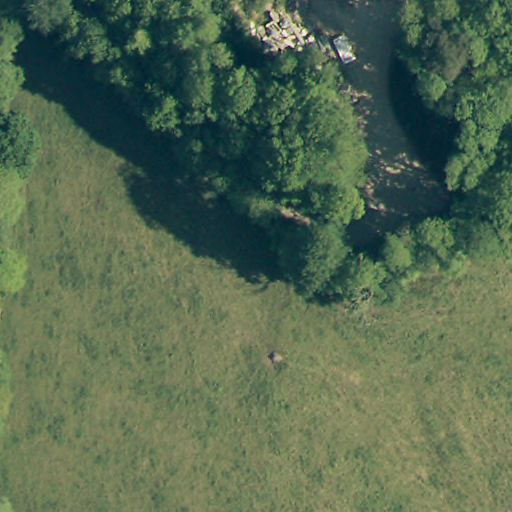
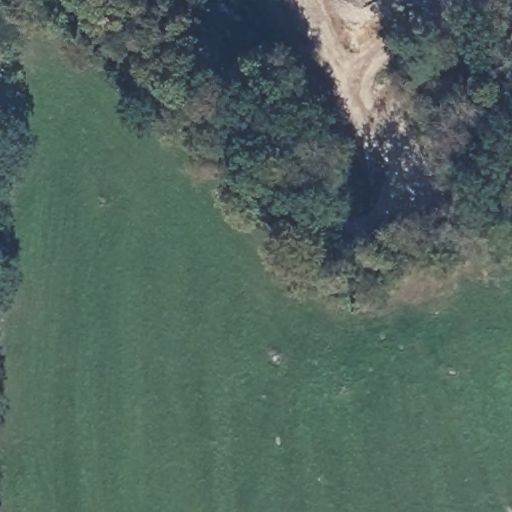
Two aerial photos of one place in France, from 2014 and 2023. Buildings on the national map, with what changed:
[]

